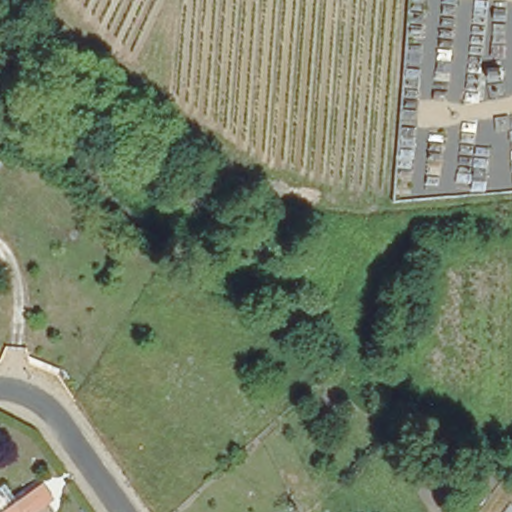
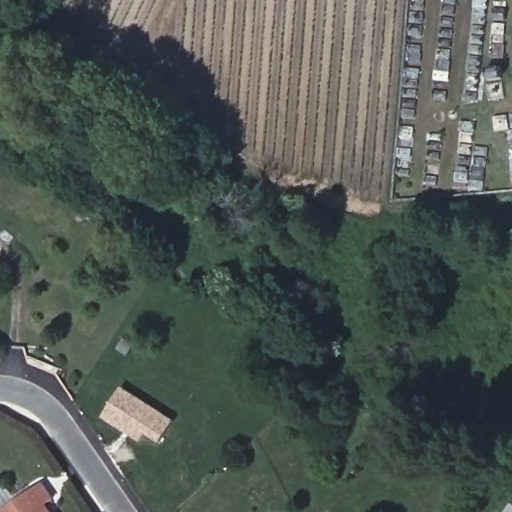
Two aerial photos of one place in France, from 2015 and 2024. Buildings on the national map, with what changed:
new [(147,435),(142,443),(104,417),(123,387),(176,421),(161,443),(147,435)]
demolished [(54,512),(37,512),(48,504),(54,512)]
unchanged [(48,512),(45,512),(47,511),(48,512)]

